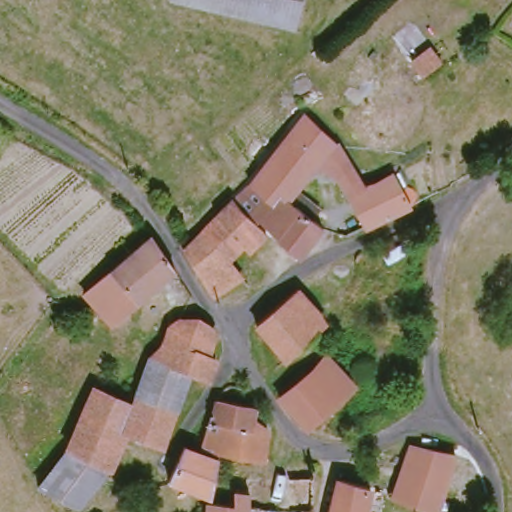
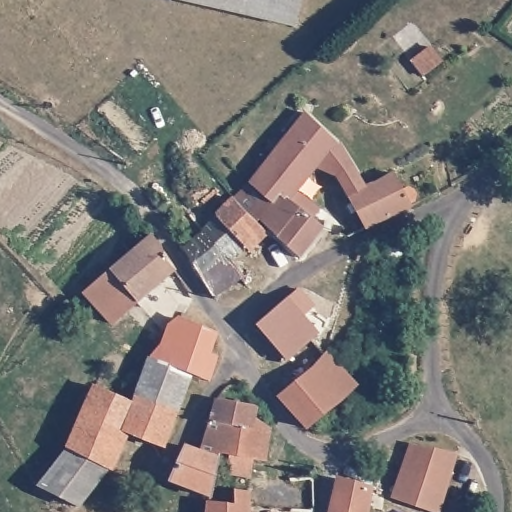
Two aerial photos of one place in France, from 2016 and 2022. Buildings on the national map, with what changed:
unchanged [(175,0),(309,0),(303,30),(175,1),(175,0)]
unchanged [(443,60),(425,75),(413,60),(431,46),(443,60)]
unchanged [(331,157),(303,192),(323,210),(316,219),(327,228),(302,256),(261,217),(238,195),(256,179),(310,111),(344,141),(355,160),(369,186),(350,194),(331,157)]
unchanged [(366,228),(350,194),(369,186),(398,172),(408,190),(412,189),(415,190),(417,191),(418,195),(419,196),(413,200),(414,205),(366,228)]
unchanged [(259,220),(270,232),(253,249),(249,245),(233,260),(204,226),(238,195),(259,220)]
unchanged [(204,226),(233,260),(232,262),(245,278),(216,295),(198,271),(185,244),(204,226)]
unchanged [(177,273),(115,326),(86,297),(97,286),(109,276),(153,240),(177,273)]
unchanged [(328,329),(317,337),(311,342),(285,363),(255,327),(297,292),(310,307),(328,329)]
unchanged [(206,333),(210,326),(220,337),(213,356),(221,360),(213,386),(203,382),(202,386),(195,383),(183,413),(135,399),(159,355),(167,358),(172,332),(184,325),(206,333)]
unchanged [(356,385),(327,412),(309,427),(282,395),(331,354),(356,385)]
unchanged [(135,399),(183,413),(168,449),(127,438),(112,474),(68,451),(97,388),(135,399)]
unchanged [(222,395),(259,405),(255,423),(264,427),(263,432),(270,435),(264,460),(222,452),(220,459),(204,453),(222,395)]
unchanged [(189,446),(204,453),(220,459),(217,477),(214,495),(212,495),(174,481),(189,446)]
unchanged [(438,512),(426,512),(393,502),(393,500),(409,447),(453,459),(438,512)]
unchanged [(40,490),(68,451),(112,474),(80,510),(40,490)]
unchanged [(252,492),(253,478),(261,478),(318,480),(315,512),(293,512),(293,511),(267,510),(267,512),(252,512),(252,492)]
unchanged [(346,478),(374,487),(370,512),(336,512),(346,478)]
unchanged [(211,511),(212,499),(238,506),(240,491),(252,492),(252,512),(211,512),(211,511)]

